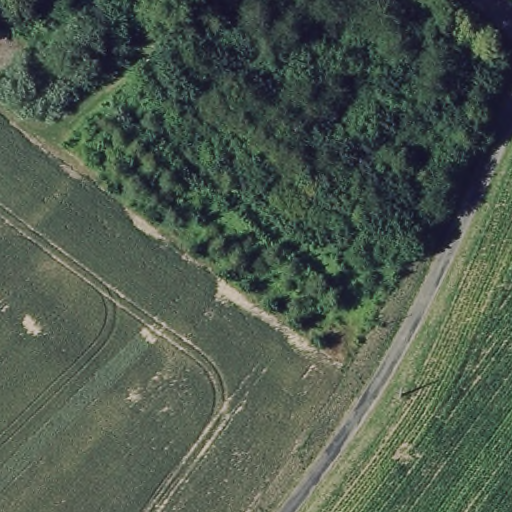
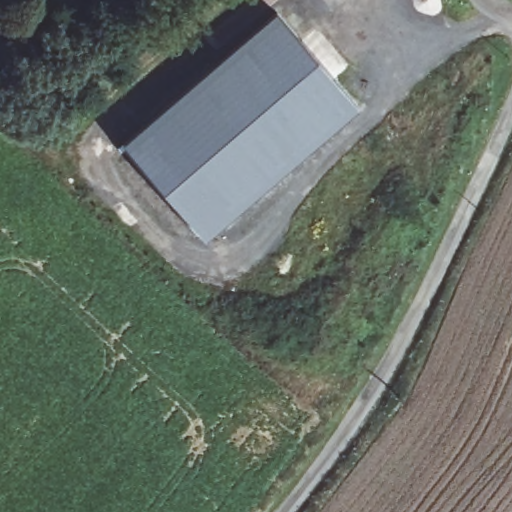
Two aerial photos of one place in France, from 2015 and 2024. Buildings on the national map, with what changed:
unchanged [(83,0),(86,0),(84,1),(83,0)]
new [(278,13),(359,108),(206,239),(125,144),(278,13)]

